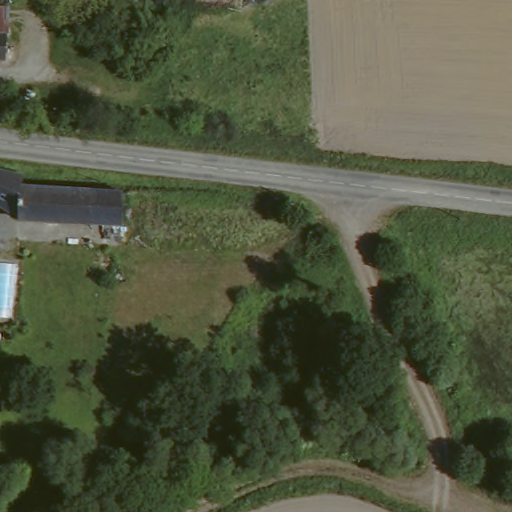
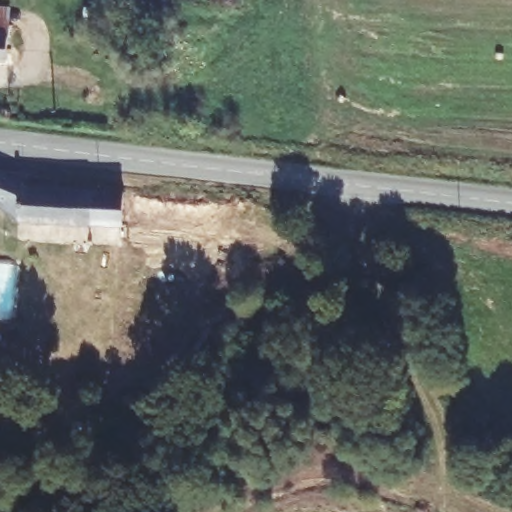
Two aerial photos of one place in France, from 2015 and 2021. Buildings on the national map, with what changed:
unchanged [(10,33),(0,33),(0,2),(12,3),(10,33)]
unchanged [(10,59),(0,59),(0,33),(10,33),(10,59)]
unchanged [(21,172),(22,180),(52,182),(91,184),(91,188),(90,218),(90,222),(15,219),(15,210),(0,202),(0,167),(19,171),(21,172)]
unchanged [(120,223),(90,222),(90,218),(91,188),(91,184),(121,187),(120,223)]

